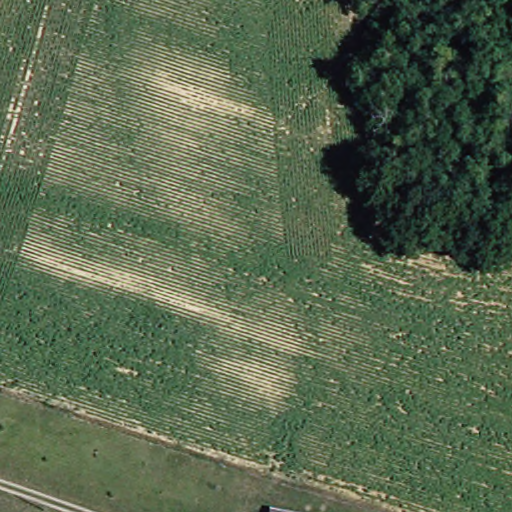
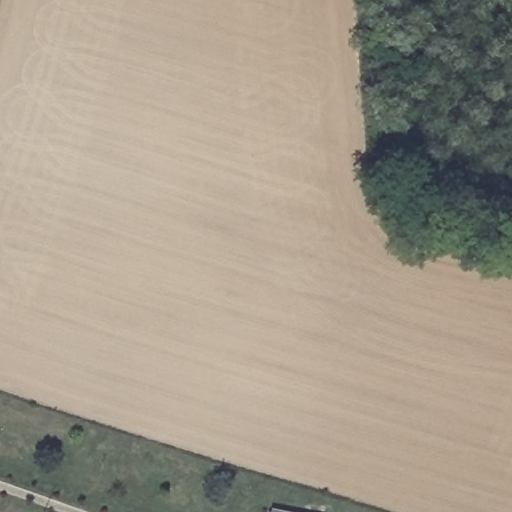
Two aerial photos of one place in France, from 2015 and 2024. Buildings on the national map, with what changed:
unchanged [(265,509),(277,512),(264,512),(265,509)]

